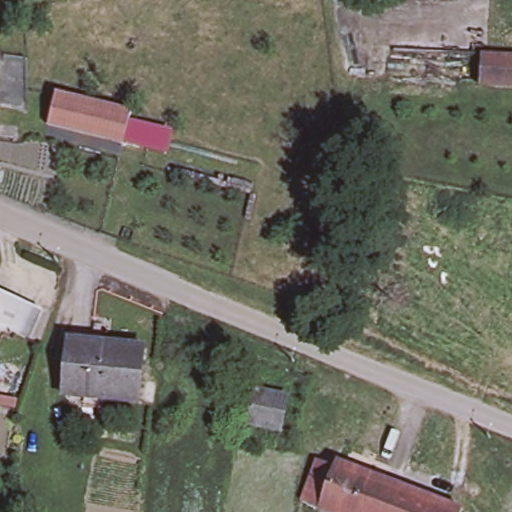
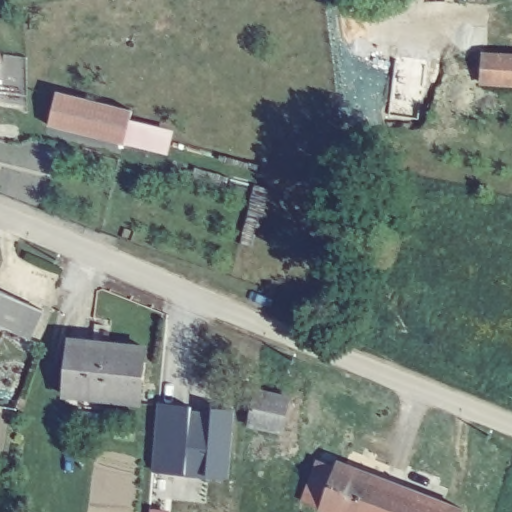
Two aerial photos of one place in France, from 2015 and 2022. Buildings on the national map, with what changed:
unchanged [(512,55),(512,84),(479,82),(480,53),(512,55)]
unchanged [(130,110),(122,144),(48,125),(55,91),(130,110)]
unchanged [(0,129),(0,106),(3,106),(0,129)]
unchanged [(30,338),(1,325),(0,328),(0,290),(42,310),(30,338)]
unchanged [(145,346),(140,402),(66,395),(70,339),(145,346)]
unchanged [(283,430),(250,423),(256,390),(288,397),(283,430)]
new [(233,410),(228,480),(151,473),(155,405),(233,410)]
unchanged [(317,464),(335,471),(338,465),(385,483),(374,512),(317,512),(301,506),(317,464)]
unchanged [(458,512),(374,512),(385,483),(458,512)]
new [(150,512),(150,511),(160,512),(150,512)]

